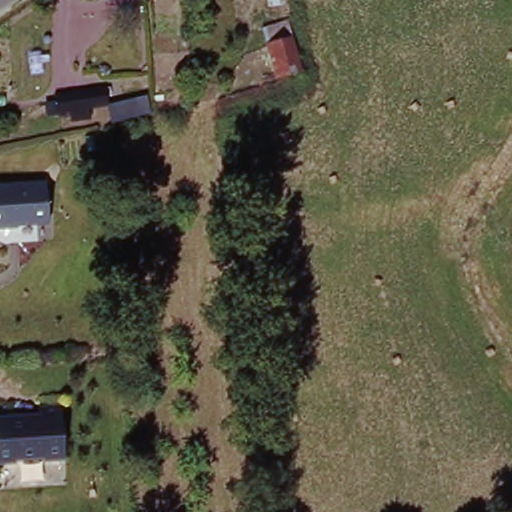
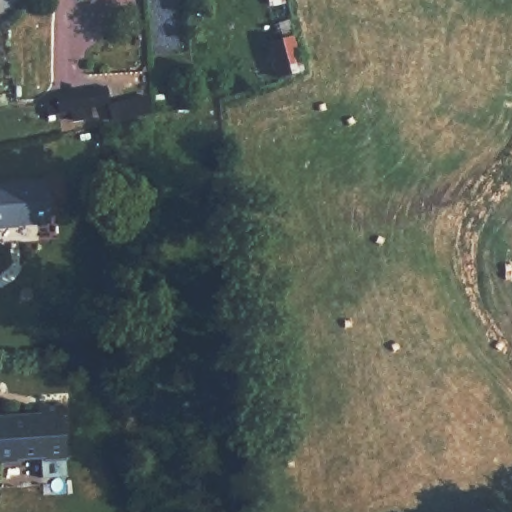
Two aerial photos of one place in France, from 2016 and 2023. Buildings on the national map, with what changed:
unchanged [(282,76),(269,28),(294,20),(307,67),(282,76)]
unchanged [(95,90),(97,109),(47,119),(45,100),(95,90)]
unchanged [(113,124),(107,102),(149,91),(158,112),(113,124)]
unchanged [(47,188),(50,228),(0,231),(0,190),(47,188)]
unchanged [(40,421),(40,410),(62,408),(67,461),(0,466),(0,422),(40,421)]

